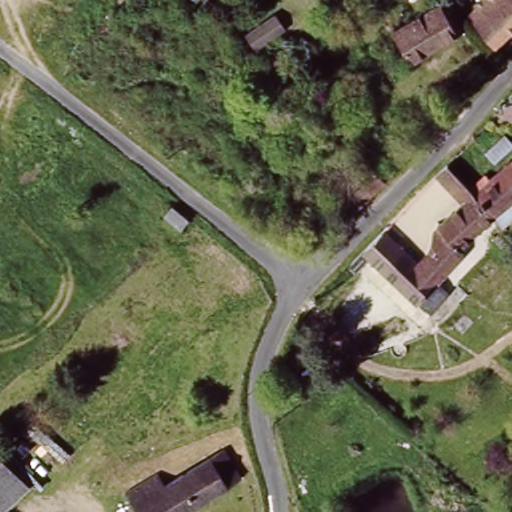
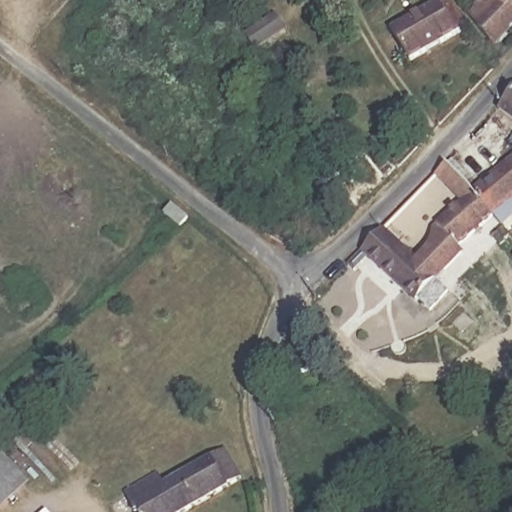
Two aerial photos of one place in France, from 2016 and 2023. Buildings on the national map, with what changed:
unchanged [(447,0),(452,0),(470,27),(412,61),(395,32),(447,0)]
unchanged [(512,0),(512,30),(497,46),(472,16),(487,0),(512,0)]
unchanged [(502,112),(494,121),(487,115),(495,107),(512,90),(512,120),(502,112)]
unchanged [(357,149),(382,176),(342,213),(336,207),(330,212),(324,205),(330,200),(320,189),(347,164),(332,148),(342,138),(357,149)]
unchanged [(507,162),(510,165),(512,163),(512,215),(499,226),(492,219),(469,194),(507,162)]
unchanged [(419,260),(425,253),(427,247),(430,236),(432,226),(457,205),(429,176),(441,164),(469,194),(492,219),(455,250),(460,256),(437,276),(419,260)]
unchanged [(512,243),(512,246),(508,250),(505,246),(501,249),(493,239),(502,232),(512,243)]
unchanged [(441,290),(424,308),(366,259),(354,272),(347,266),(360,253),(379,233),(414,265),(419,260),(437,276),(432,281),(441,290)]
unchanged [(164,486),(222,452),(239,482),(188,512),(137,512),(127,494),(158,476),(164,486)]
unchanged [(13,512),(0,512),(0,458),(33,493),(13,512)]

